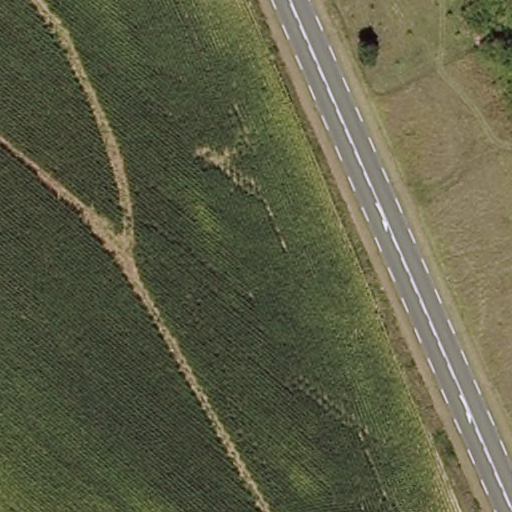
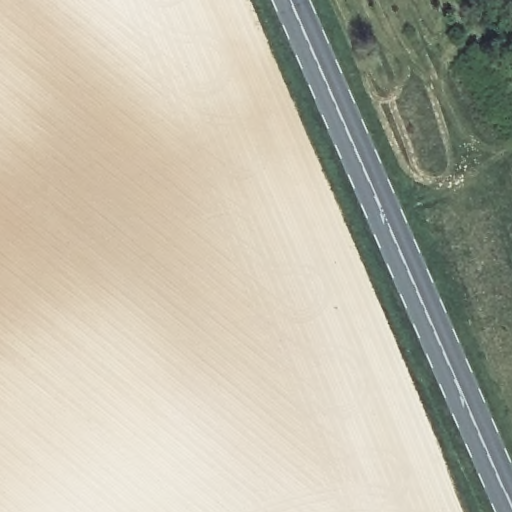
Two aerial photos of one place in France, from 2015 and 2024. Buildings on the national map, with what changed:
[]

